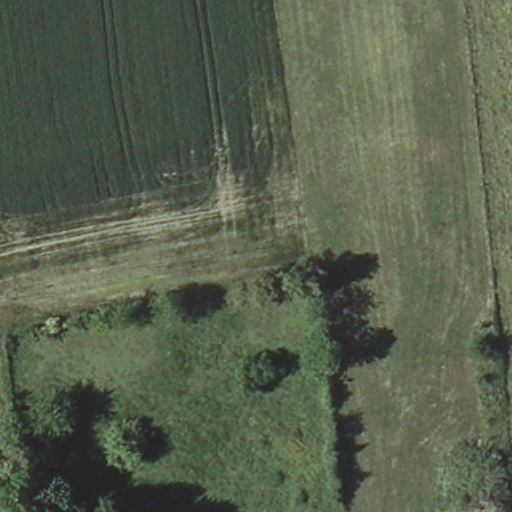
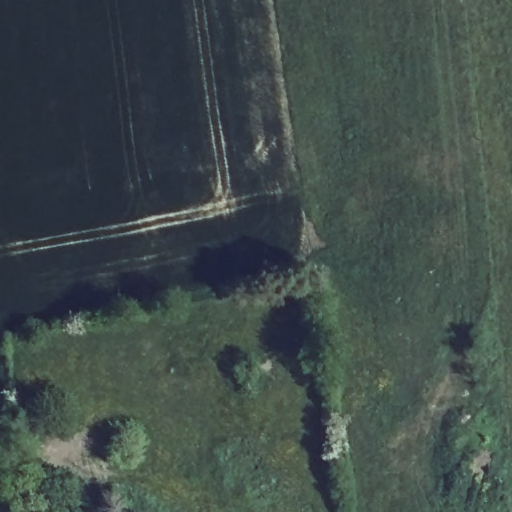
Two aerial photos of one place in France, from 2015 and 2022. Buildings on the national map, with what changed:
[]

